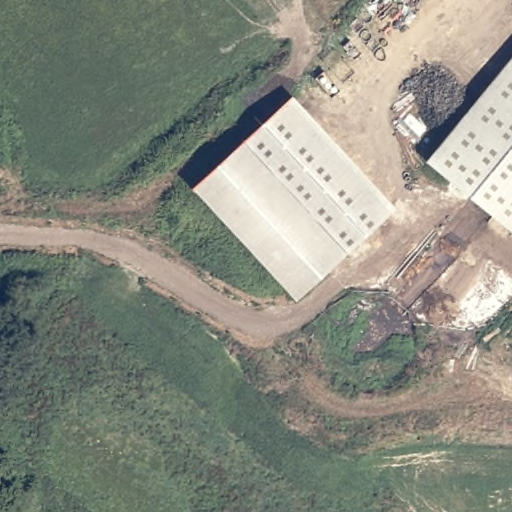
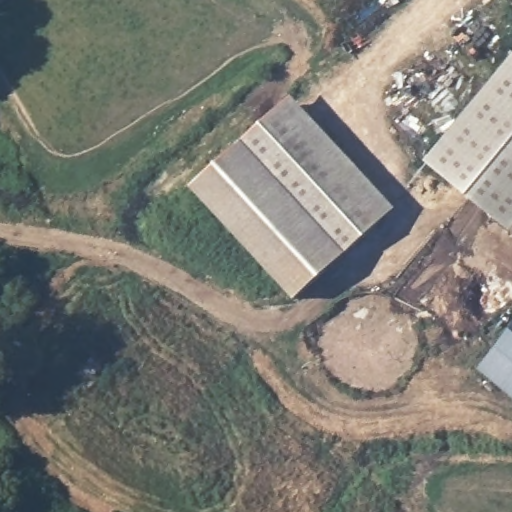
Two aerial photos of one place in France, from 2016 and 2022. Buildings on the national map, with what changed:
unchanged [(447,174),(512,97),(512,224),(509,227),(476,200),(447,174)]
unchanged [(390,215),(298,295),(199,181),(291,101),(390,215)]
new [(512,328),(512,397),(478,370),(512,328)]

